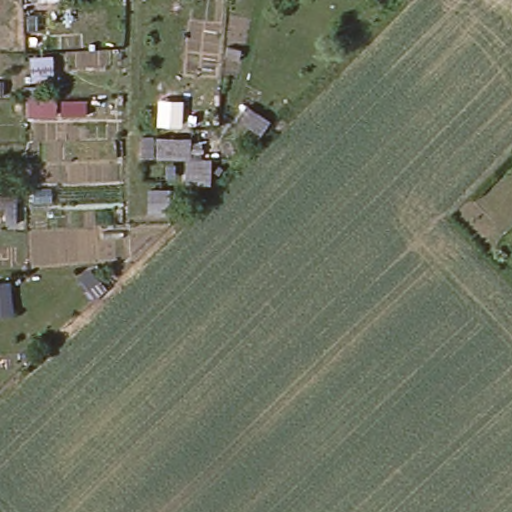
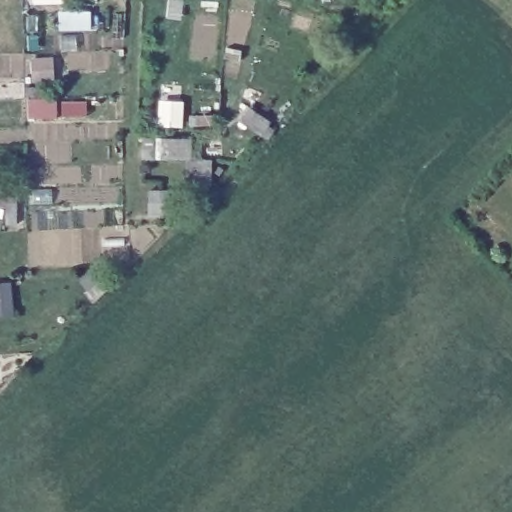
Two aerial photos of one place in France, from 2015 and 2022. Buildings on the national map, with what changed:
unchanged [(197,139),(199,156),(210,159),(211,186),(185,187),(183,162),(137,164),(141,139),(197,139)]
unchanged [(18,223),(3,225),(1,207),(0,207),(0,193),(16,192),(18,223)]

